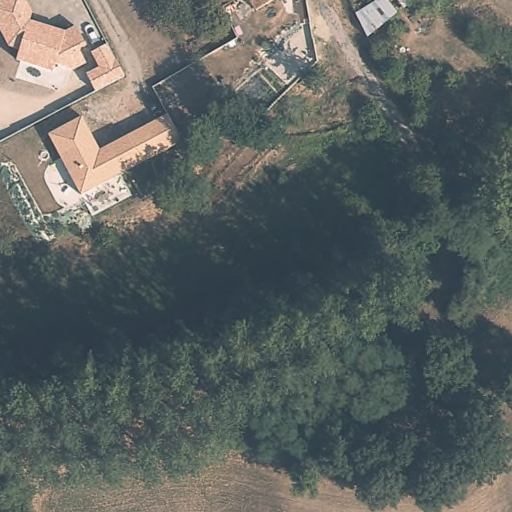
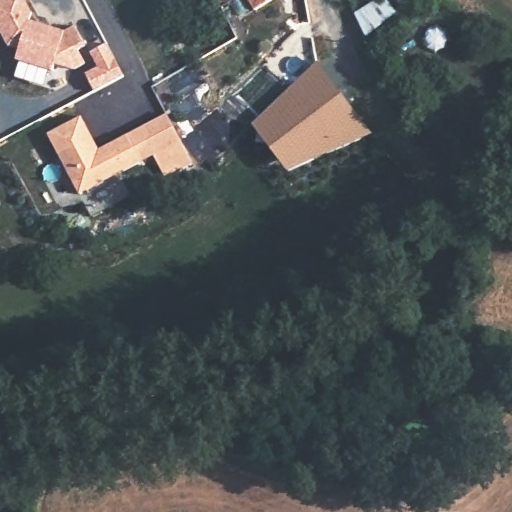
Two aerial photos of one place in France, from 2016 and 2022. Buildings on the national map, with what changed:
unchanged [(29,20),(62,30),(61,32),(74,26),(85,47),(77,50),(86,64),(69,71),(57,63),(50,69),(16,58),(17,51),(8,46),(0,31),(0,0),(24,0),(32,11),(29,20)]
unchanged [(218,5),(215,0),(227,0),(218,5)]
unchanged [(218,5),(227,0),(266,0),(269,4),(229,29),(218,5)]
unchanged [(353,18),(376,0),(377,0),(393,19),(365,41),(353,18)]
unchanged [(391,1),(392,0),(416,0),(401,12),(391,1)]
unchanged [(123,75),(92,91),(85,74),(96,68),(89,53),(105,44),(123,75)]
new [(289,170),(252,123),(316,62),(373,134),(289,170)]
unchanged [(80,195),(47,134),(81,116),(99,149),(166,113),(181,141),(80,195)]
unchanged [(163,176),(153,156),(181,141),(192,162),(163,176)]

